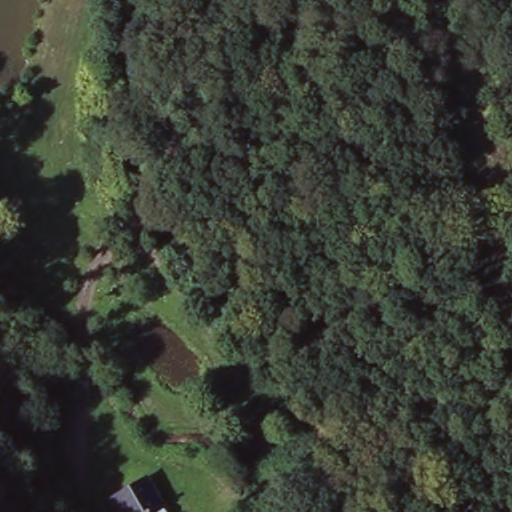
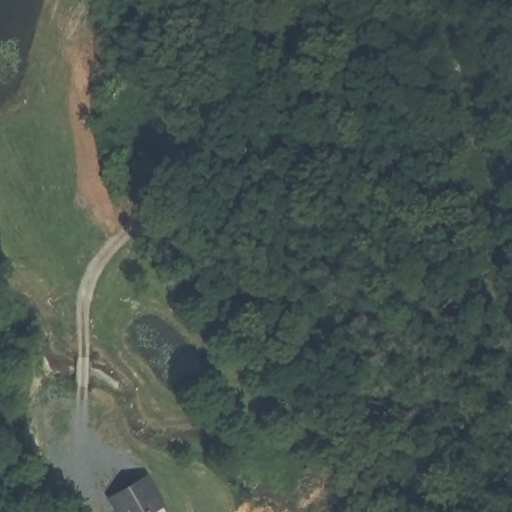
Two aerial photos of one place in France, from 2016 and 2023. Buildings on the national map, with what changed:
unchanged [(152,476),(167,512),(114,512),(106,499),(152,476)]

